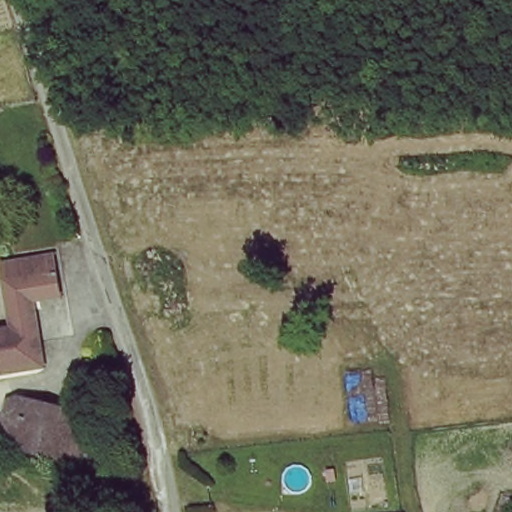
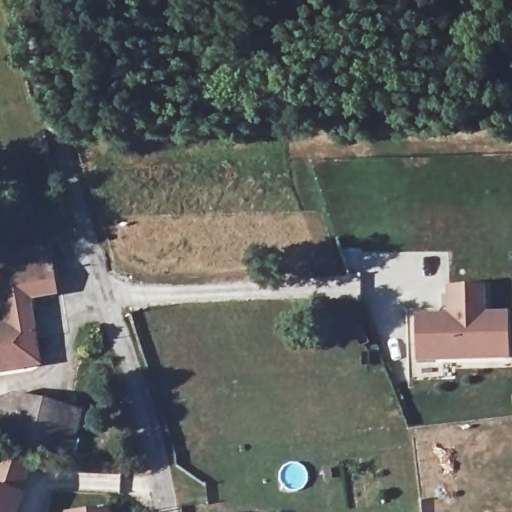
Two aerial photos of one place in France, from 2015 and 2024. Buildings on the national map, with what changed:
unchanged [(11,332),(0,288),(0,265),(45,255),(53,289),(27,296),(41,360),(0,371),(0,334),(11,332)]
new [(509,360),(418,363),(416,316),(448,314),(448,288),(485,287),(488,315),(508,314),(509,360)]
unchanged [(62,457),(38,450),(0,441),(0,418),(2,418),(7,400),(52,413),(72,418),(62,457)]
new [(18,512),(0,512),(0,506),(18,512)]

